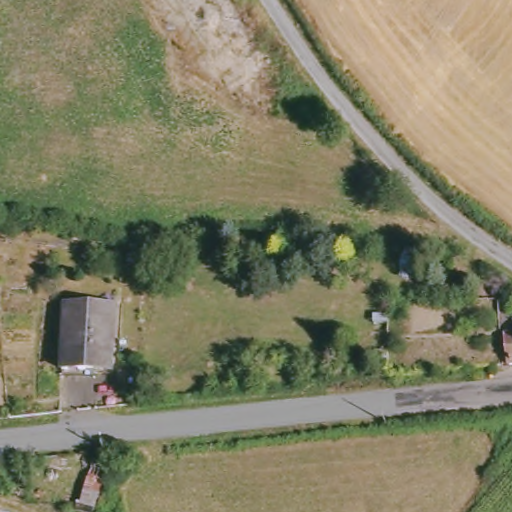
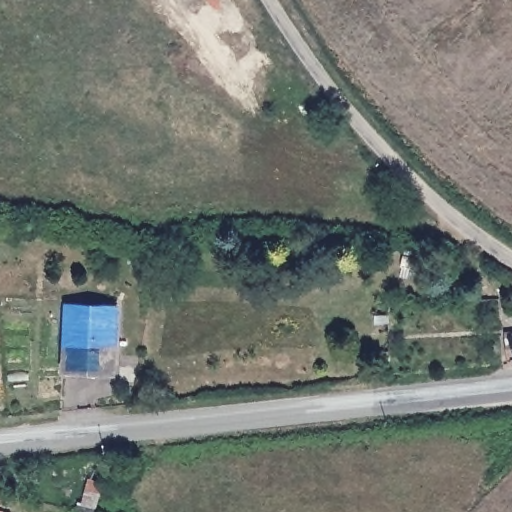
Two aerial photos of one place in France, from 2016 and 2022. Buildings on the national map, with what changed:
unchanged [(117,367),(89,367),(89,372),(66,372),(67,306),(117,307),(117,367)]
unchanged [(512,362),(507,332),(512,332),(512,362)]
unchanged [(92,462),(107,468),(96,512),(79,512),(92,462)]

